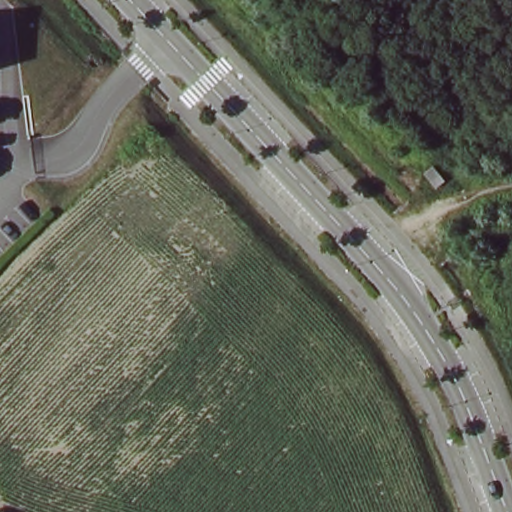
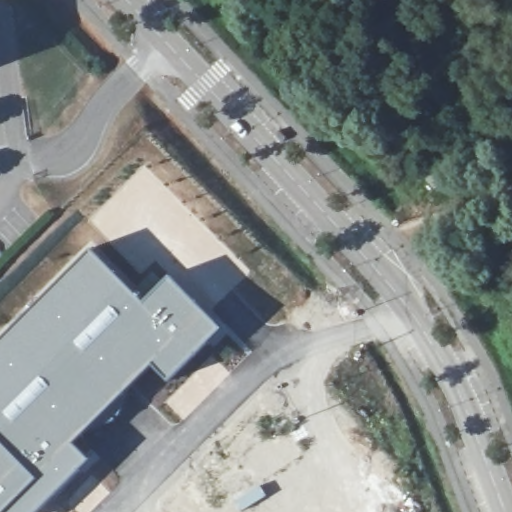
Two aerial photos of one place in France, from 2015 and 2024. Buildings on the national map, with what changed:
new [(39,296),(89,248),(144,300),(169,275),(222,327),(168,382),(150,365),(74,442),(91,458),(36,512),(0,512),(0,335),(39,296)]

